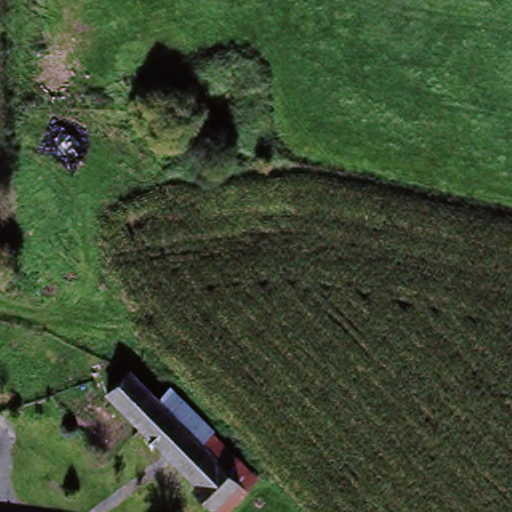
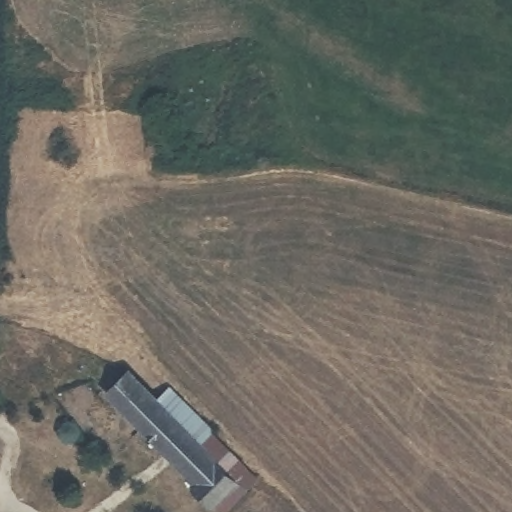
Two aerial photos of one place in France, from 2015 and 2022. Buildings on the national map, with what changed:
unchanged [(134,375),(221,466),(200,487),(113,395),(134,375)]
unchanged [(248,494),(227,512),(217,512),(197,489),(200,487),(221,466),(248,494)]

